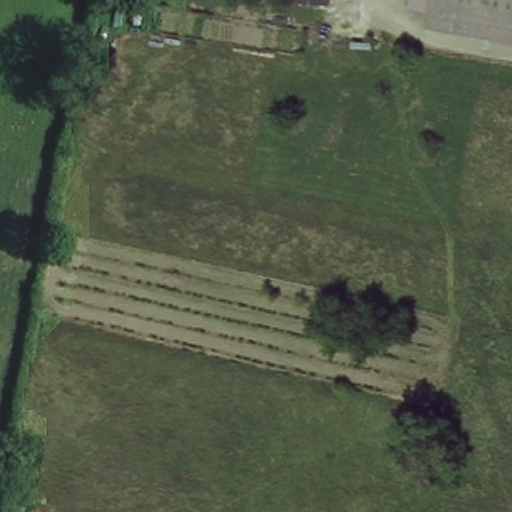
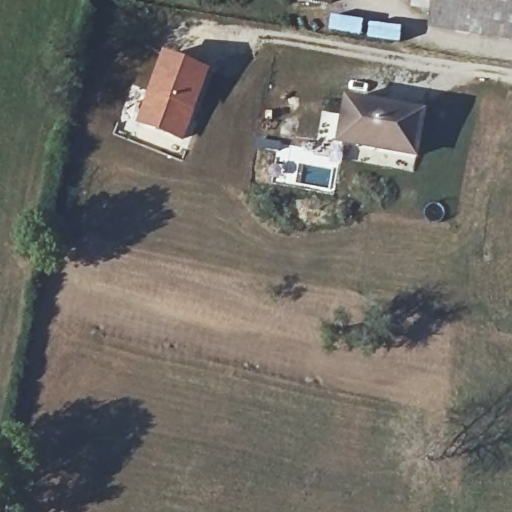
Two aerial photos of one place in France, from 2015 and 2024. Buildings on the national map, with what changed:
unchanged [(430,29),(432,8),(415,3),(415,0),(512,0),(512,44),(430,29)]
new [(209,81),(182,150),(136,129),(163,62),(209,81)]
new [(428,111),(419,158),(337,144),(346,95),(428,111)]

